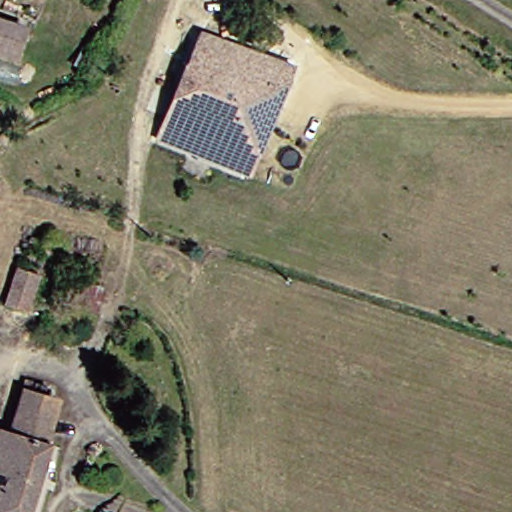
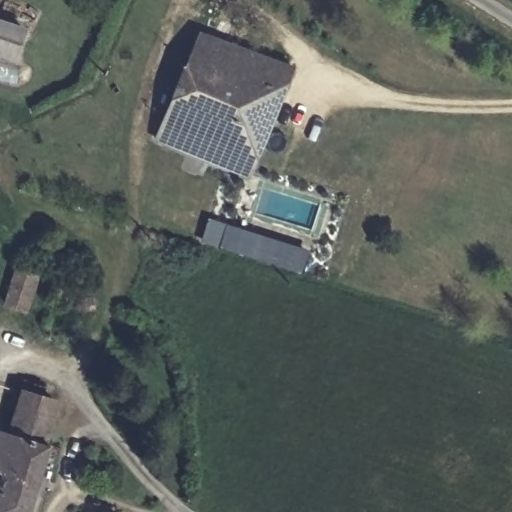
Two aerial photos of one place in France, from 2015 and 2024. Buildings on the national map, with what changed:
unchanged [(21,30),(12,55),(0,51),(0,23),(21,30)]
unchanged [(159,140),(197,32),(290,63),(281,90),(261,84),(234,166),(159,140)]
unchanged [(252,172),(234,166),(261,84),(281,90),(252,172)]
new [(305,271),(202,240),(209,218),(311,249),(305,271)]
unchanged [(2,302),(13,270),(31,276),(21,308),(2,302)]
unchanged [(91,310),(57,301),(64,281),(97,291),(91,310)]
unchanged [(2,512),(0,511),(0,427),(3,428),(21,376),(43,383),(40,393),(48,395),(35,437),(45,440),(55,443),(35,512),(2,512)]

